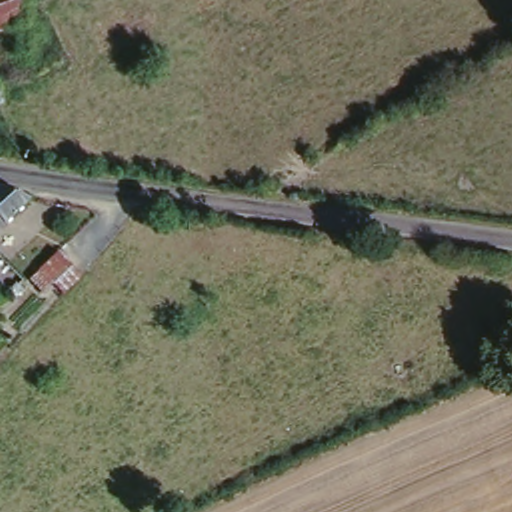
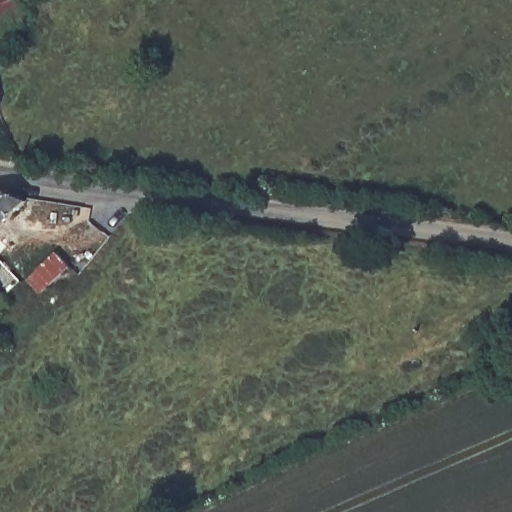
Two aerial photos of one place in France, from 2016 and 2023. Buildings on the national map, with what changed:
unchanged [(26,20),(11,27),(0,32),(0,9),(16,1),(26,20)]
unchanged [(11,195),(26,204),(0,232),(0,193),(5,194),(11,195)]
unchanged [(53,281),(41,292),(29,279),(56,252),(70,265),(80,274),(63,291),(53,281)]

